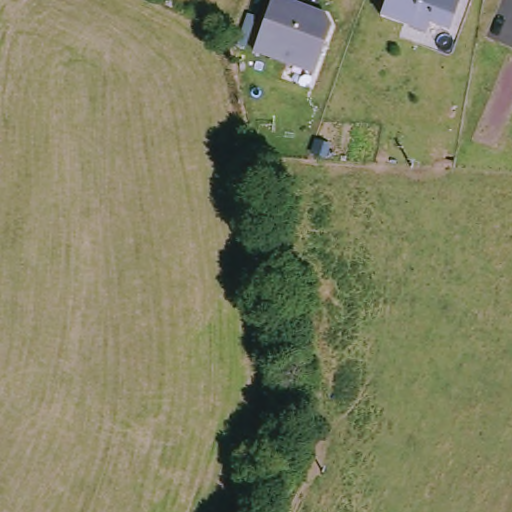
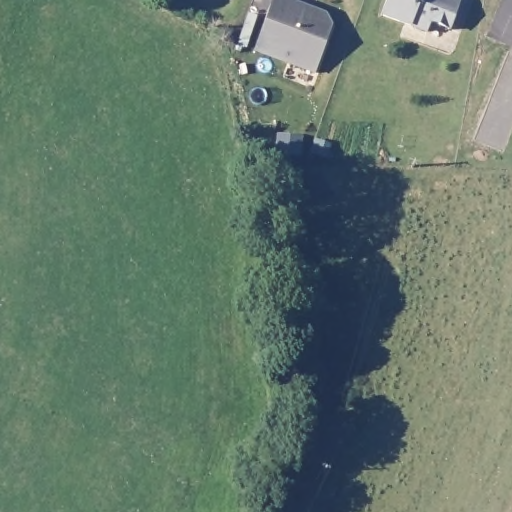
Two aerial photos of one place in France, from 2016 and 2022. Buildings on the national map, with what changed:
unchanged [(445,28),(426,21),(422,30),(376,13),(382,0),(456,0),(445,28)]
unchanged [(310,16),(327,22),(332,32),(316,80),(254,58),(274,3),(301,13),(310,16)]

